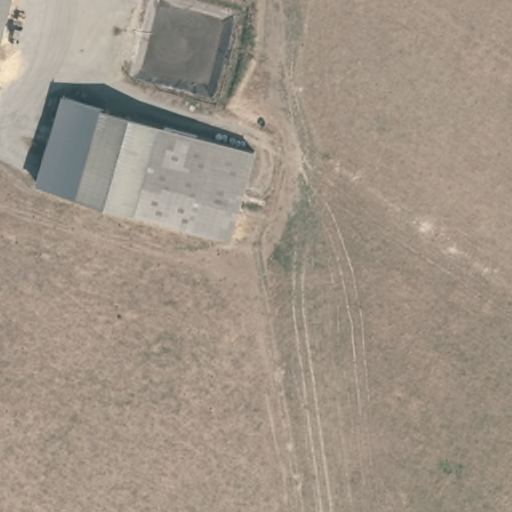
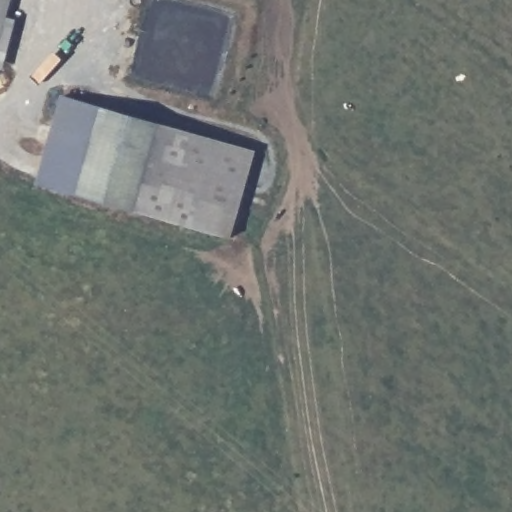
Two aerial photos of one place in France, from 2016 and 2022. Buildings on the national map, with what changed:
unchanged [(11,0),(0,42),(0,0),(11,0)]
unchanged [(230,239),(135,212),(75,196),(38,186),(61,99),(101,109),(158,124),(253,151),(230,239)]

